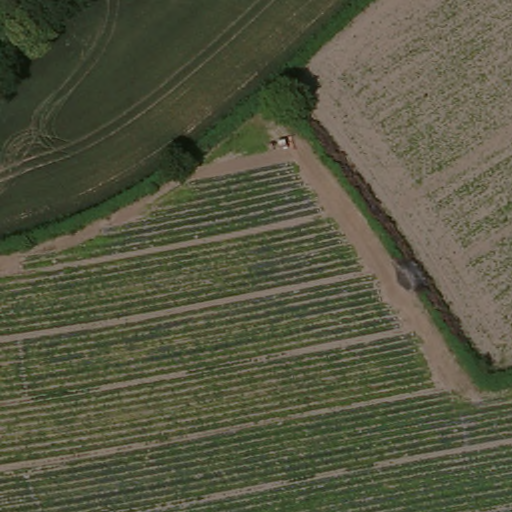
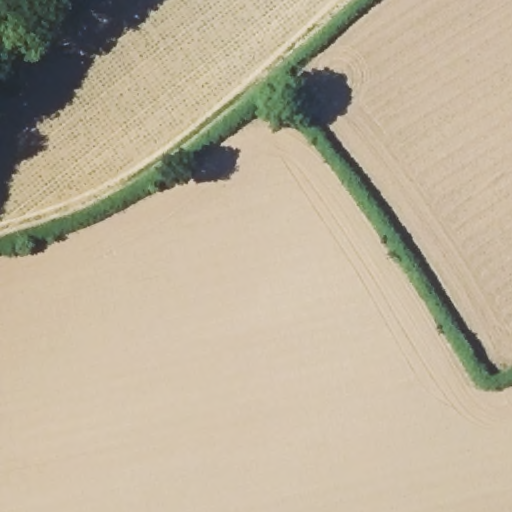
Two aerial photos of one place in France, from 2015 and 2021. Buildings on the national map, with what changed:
[]

